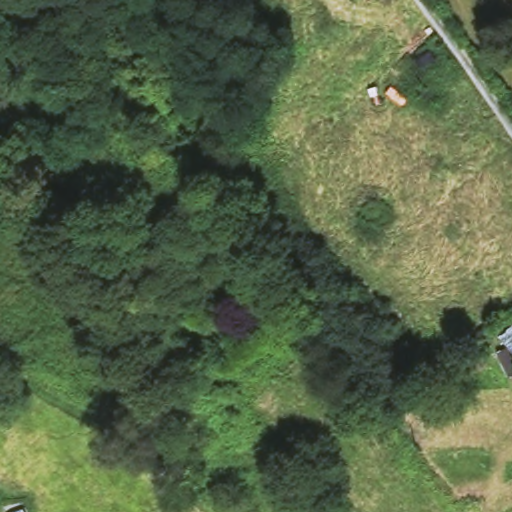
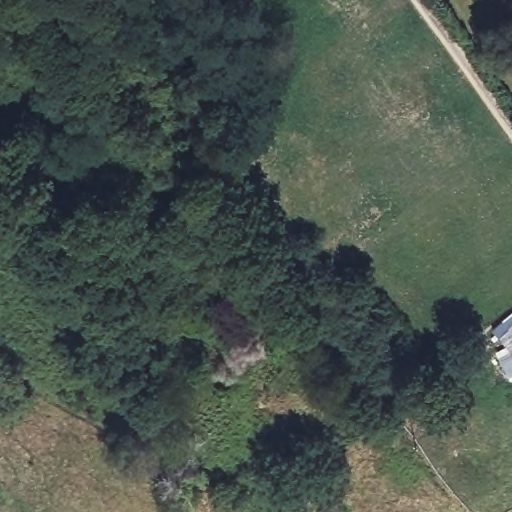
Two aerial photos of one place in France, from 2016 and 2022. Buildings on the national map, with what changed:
[]

